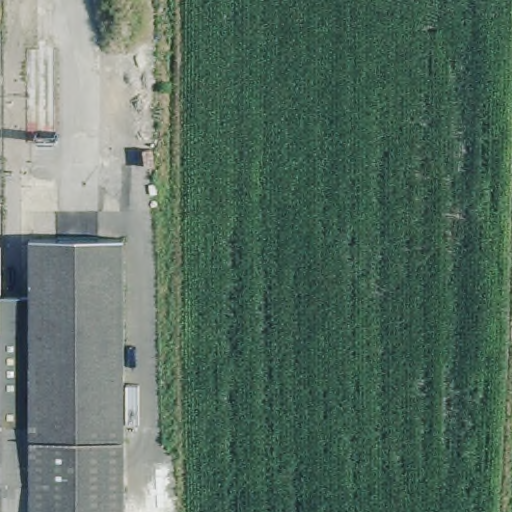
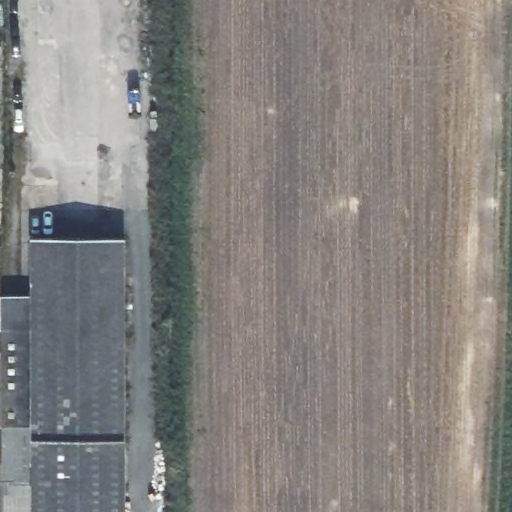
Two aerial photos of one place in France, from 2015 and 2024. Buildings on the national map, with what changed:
unchanged [(38,296),(38,246),(125,245),(127,450),(40,450),(38,296)]
unchanged [(40,512),(4,512),(3,486),(0,486),(0,299),(38,298),(40,450),(40,512)]
unchanged [(127,450),(127,512),(40,512),(40,450),(127,450)]

